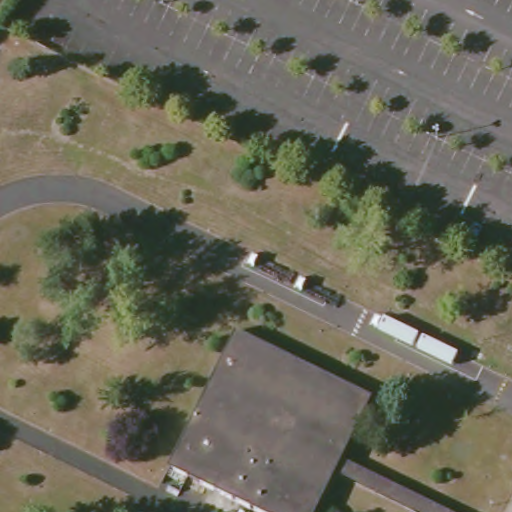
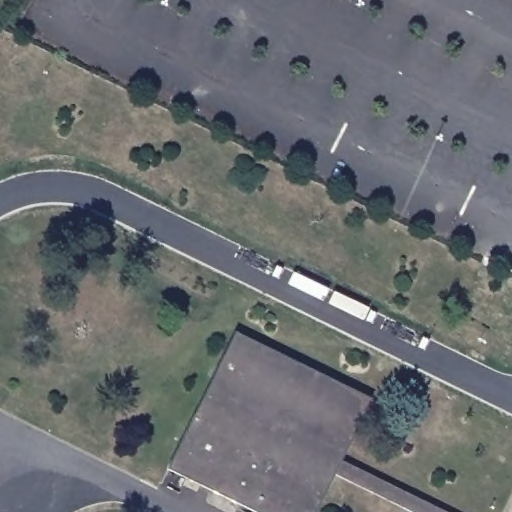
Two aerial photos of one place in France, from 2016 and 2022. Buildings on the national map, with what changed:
unchanged [(332,472),(311,512),(261,512),(162,463),(232,325),(369,394),(338,456),(454,512),(414,512),(332,472)]

